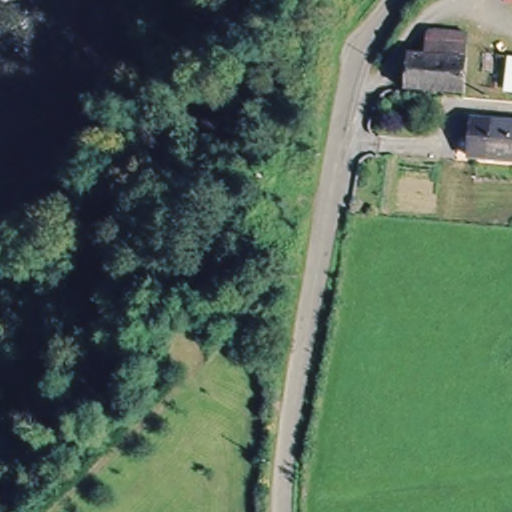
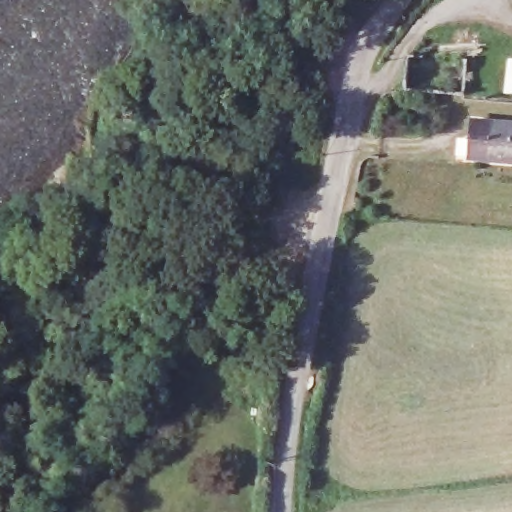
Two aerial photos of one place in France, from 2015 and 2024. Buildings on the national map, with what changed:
unchanged [(425,61),(426,35),(465,38),(465,64),(425,61)]
unchanged [(465,96),(405,92),(406,60),(425,61),(465,64),(465,96)]
unchanged [(512,96),(502,95),(507,60),(512,61),(512,96)]
unchanged [(475,120),(512,122),(512,168),(473,165),(475,120)]

